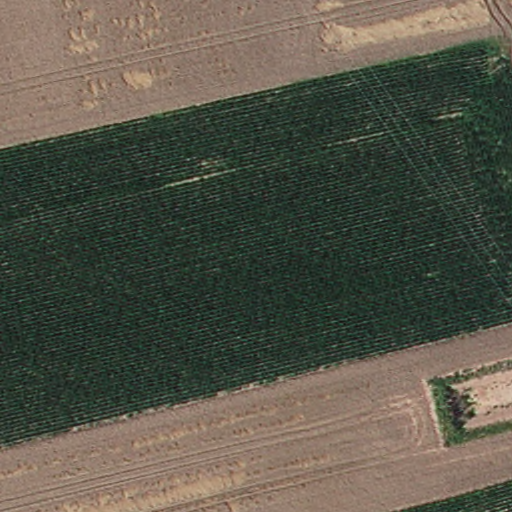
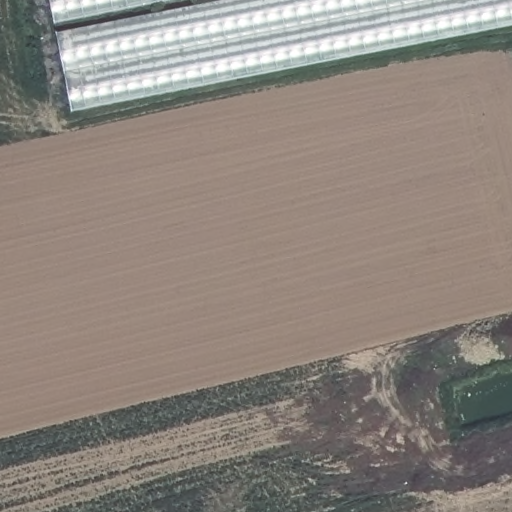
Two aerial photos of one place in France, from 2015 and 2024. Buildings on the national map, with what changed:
new [(512,21),(67,117),(45,0),(512,0),(512,21)]
demolished [(512,16),(327,57),(316,0),(512,0),(512,16)]

